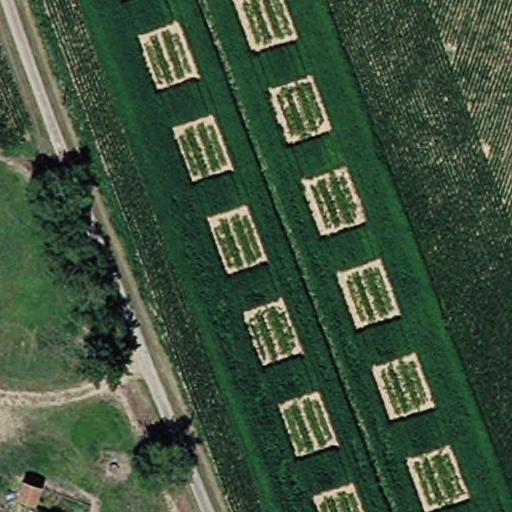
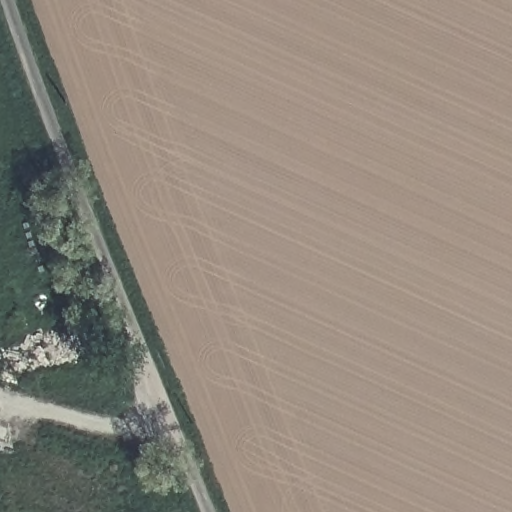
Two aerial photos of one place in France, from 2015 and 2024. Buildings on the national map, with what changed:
unchanged [(27,481),(46,487),(43,500),(24,494),(27,481)]

